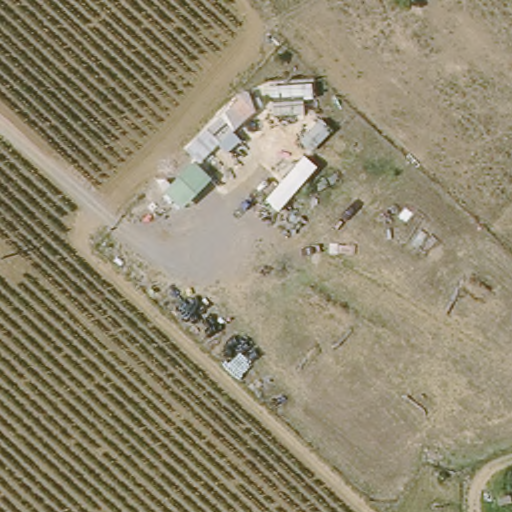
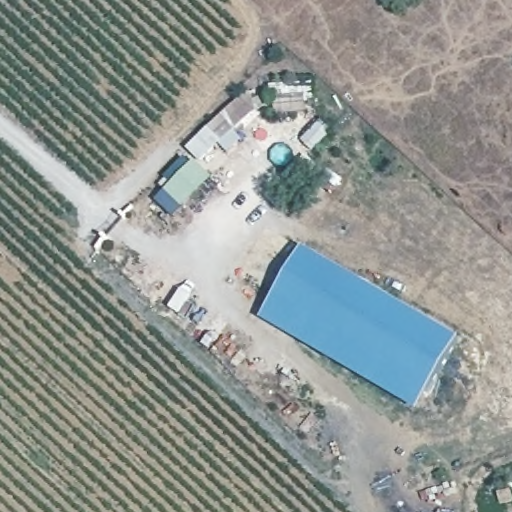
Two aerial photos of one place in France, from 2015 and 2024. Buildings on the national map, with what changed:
new [(233,130),(240,138),(227,153),(218,145),(202,162),(188,150),(247,93),(257,108),(233,130)]
new [(260,319),(302,248),(460,340),(417,411),(260,319)]

